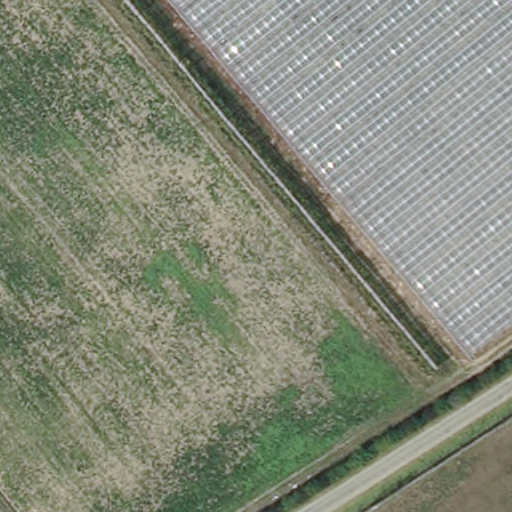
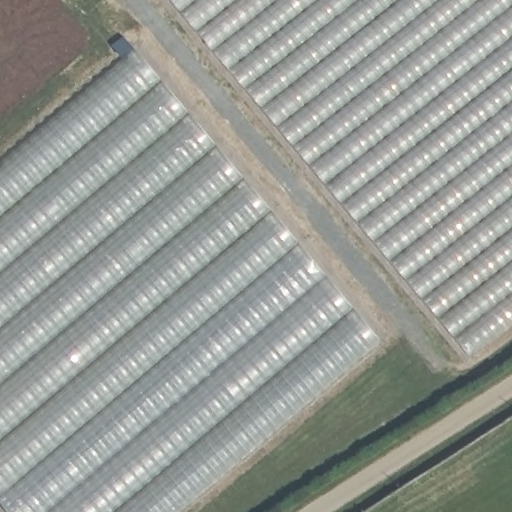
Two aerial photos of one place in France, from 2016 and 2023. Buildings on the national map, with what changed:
unchanged [(170,0),(512,0),(512,319),(469,352),(170,0)]
new [(135,45),(382,336),(174,512),(13,512),(0,497),(0,157),(135,45)]

